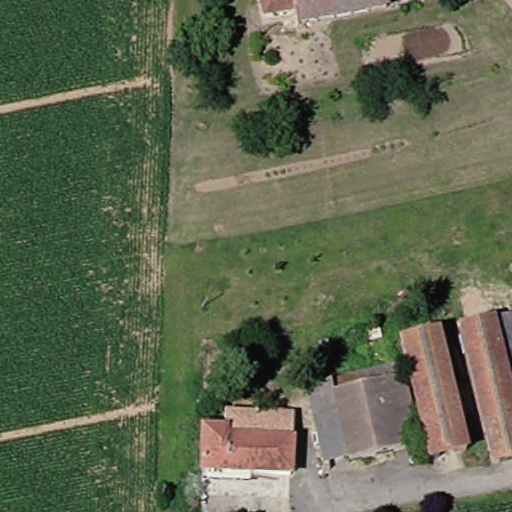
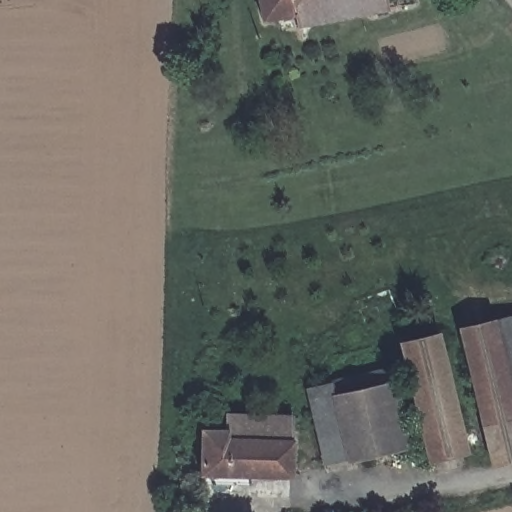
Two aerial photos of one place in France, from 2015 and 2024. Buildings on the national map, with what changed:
unchanged [(287,10),(252,16),(250,0),(379,0),(380,5),(288,19),(287,10)]
unchanged [(512,314),(512,404),(507,405),(485,317),(511,312),(512,314)]
unchanged [(512,457),(485,463),(451,324),(485,317),(507,405),(512,429),(512,457)]
unchanged [(397,342),(431,335),(458,454),(425,460),(397,342)]
unchanged [(328,378),(397,367),(413,448),(345,460),(328,378)]
unchanged [(192,467),(192,426),(219,426),(219,413),(287,413),(288,466),(273,466),(195,467),(192,467)]
unchanged [(250,482),(195,483),(195,467),(273,466),(273,476),(250,476),(250,482)]

